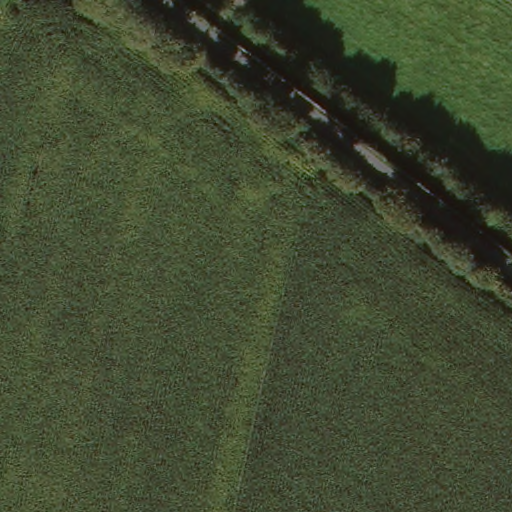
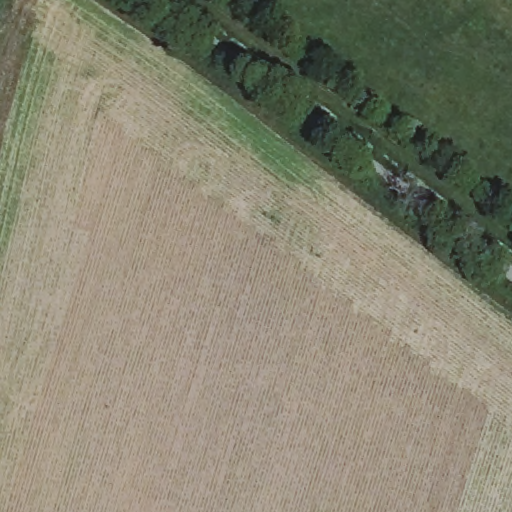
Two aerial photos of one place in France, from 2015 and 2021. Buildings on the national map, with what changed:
[]

